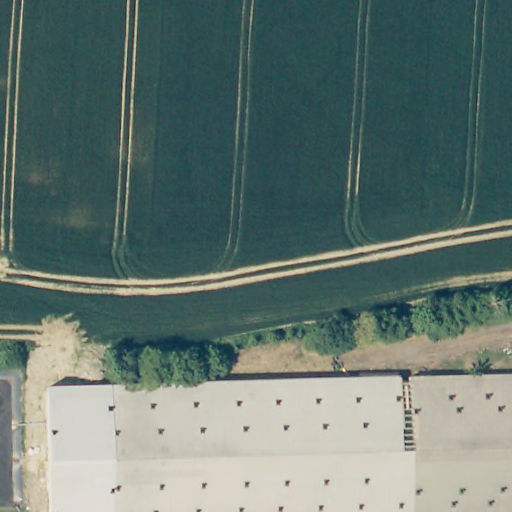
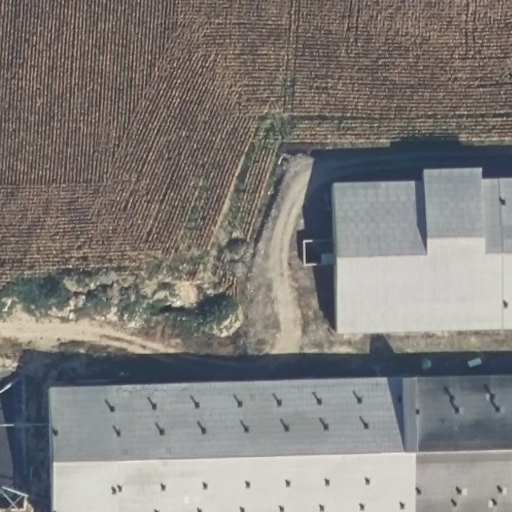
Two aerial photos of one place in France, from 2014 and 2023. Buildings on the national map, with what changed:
new [(335,334),(330,183),(420,179),(420,169),(477,167),(477,179),(498,179),(500,328),(335,334)]
new [(512,178),(512,328),(500,328),(498,179),(512,178)]
unchanged [(512,512),(460,512),(450,377),(512,375),(512,512)]
unchanged [(48,386),(110,383),(149,383),(450,377),(460,512),(48,512),(48,386)]

